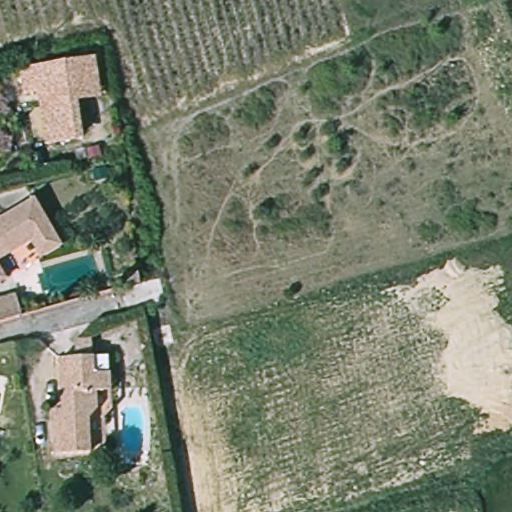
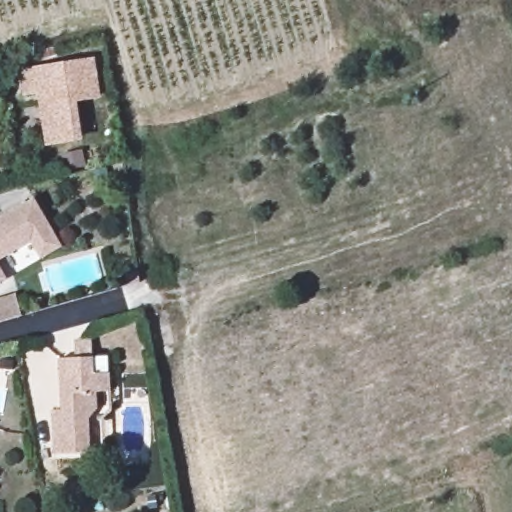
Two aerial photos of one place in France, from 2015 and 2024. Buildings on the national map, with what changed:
unchanged [(48,137),(38,86),(23,89),(18,66),(89,54),(93,78),(95,89),(71,94),(78,131),(48,137)]
unchanged [(49,214),(66,243),(45,255),(34,237),(18,246),(0,257),(0,218),(37,195),(49,214)]
unchanged [(0,283),(0,260),(10,277),(0,283)]
unchanged [(13,314),(0,318),(0,296),(8,294),(13,314)]
unchanged [(78,359),(76,342),(93,340),(95,358),(95,374),(103,374),(104,390),(95,391),(97,409),(88,422),(91,456),(58,458),(56,426),(66,424),(61,360),(78,359)]

